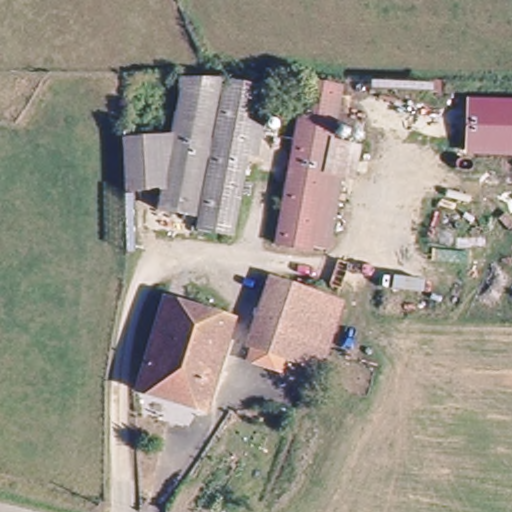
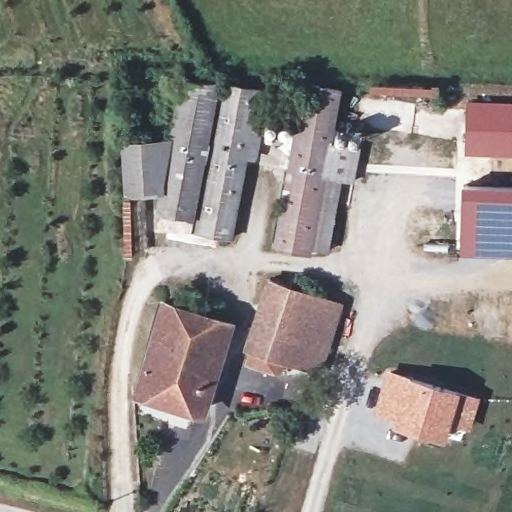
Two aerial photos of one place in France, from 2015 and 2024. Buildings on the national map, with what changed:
unchanged [(135,137),(160,139),(168,77),(204,77),(210,77),(187,214),(150,209),(154,182),(136,184),(135,137)]
unchanged [(257,90),(234,235),(194,228),(217,84),(257,90)]
unchanged [(324,182),(314,252),(273,246),(298,85),(339,89),(329,149),(352,153),(348,187),(343,187),(324,182)]
unchanged [(512,102),(512,154),(460,153),(463,101),(512,102)]
unchanged [(331,256),(314,252),(324,182),(343,187),(331,256)]
new [(512,185),(512,255),(460,253),(462,182),(512,185)]
unchanged [(251,380),(261,356),(242,350),(264,281),(336,304),(319,364),(316,375),(305,373),(269,360),(261,385),(251,380)]
unchanged [(202,405),(136,388),(159,304),(226,321),(222,341),(202,405)]
new [(388,366),(482,395),(472,429),(453,424),(448,439),(373,413),(388,366)]

